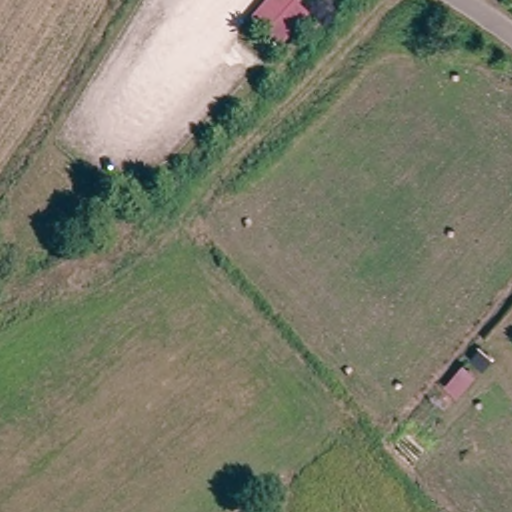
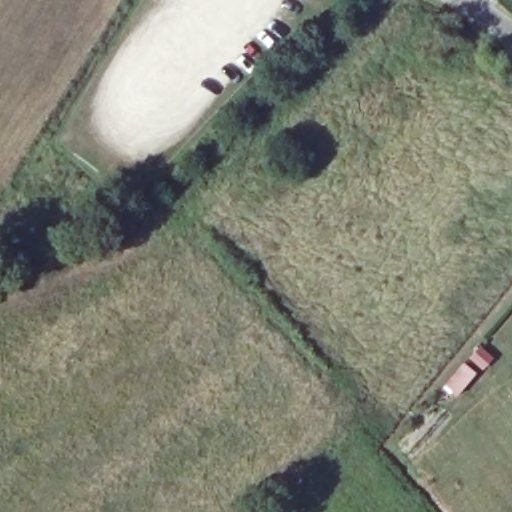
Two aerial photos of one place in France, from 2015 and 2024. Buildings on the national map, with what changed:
unchanged [(254,22),(273,0),(290,0),(308,19),(282,50),(254,22)]

